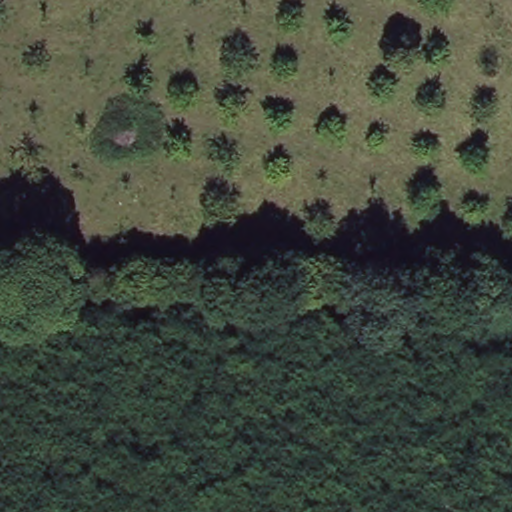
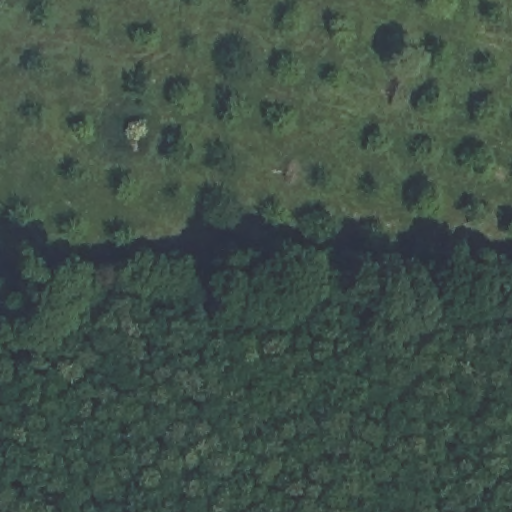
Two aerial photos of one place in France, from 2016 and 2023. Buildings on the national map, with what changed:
[]

